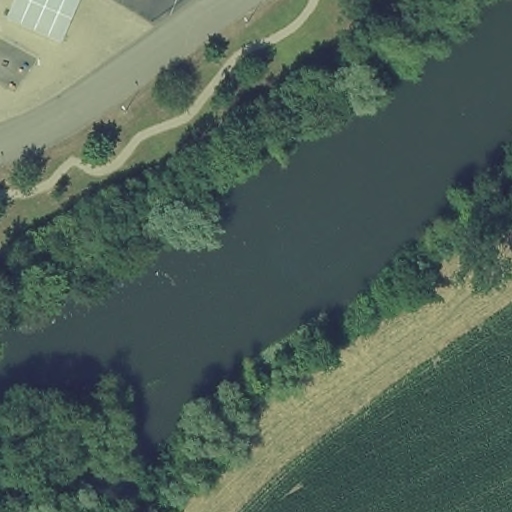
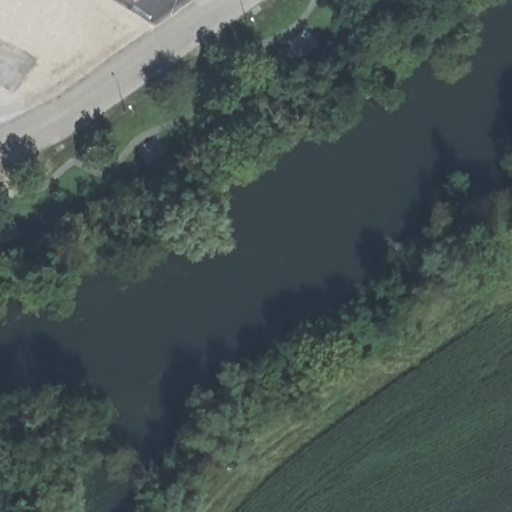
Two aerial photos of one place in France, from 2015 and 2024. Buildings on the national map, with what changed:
unchanged [(60,42),(8,17),(16,0),(81,0),(60,42)]

